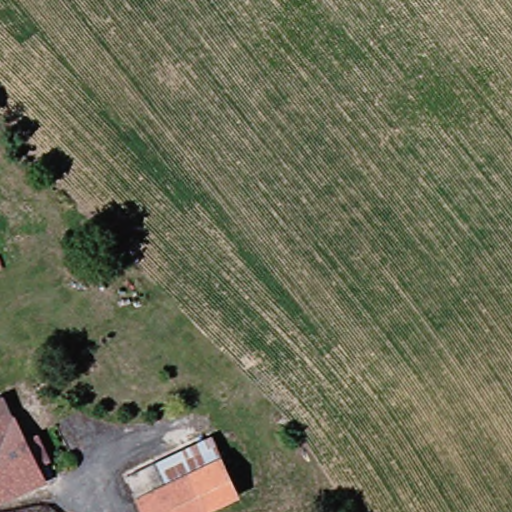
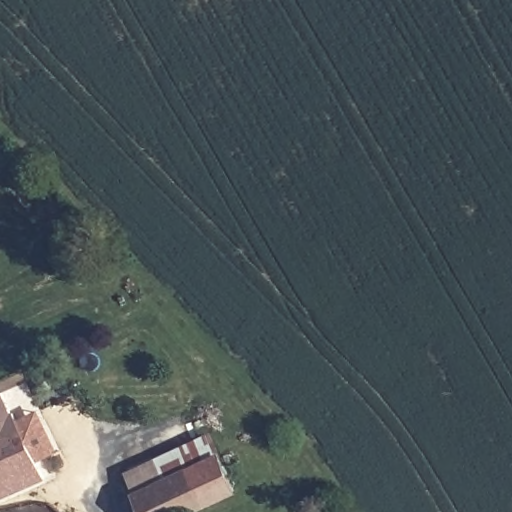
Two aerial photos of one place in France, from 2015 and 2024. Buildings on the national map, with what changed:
unchanged [(53,465),(60,482),(2,507),(0,503),(0,401),(17,393),(27,414),(30,413),(42,441),(51,436),(62,461),(53,465)]
unchanged [(232,458),(175,480),(164,457),(221,435),(232,458)]
unchanged [(197,512),(154,512),(135,468),(164,457),(175,480),(232,458),(248,492),(197,512)]

